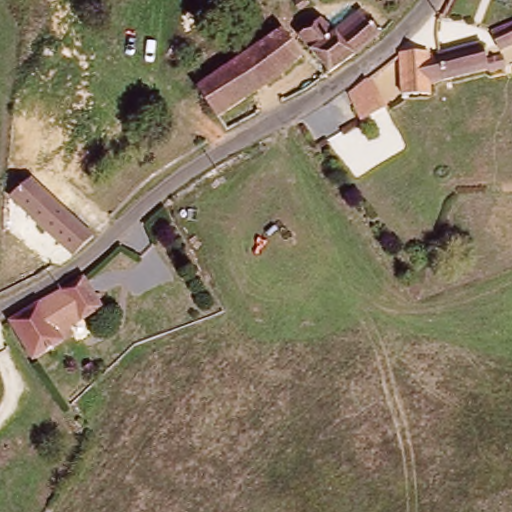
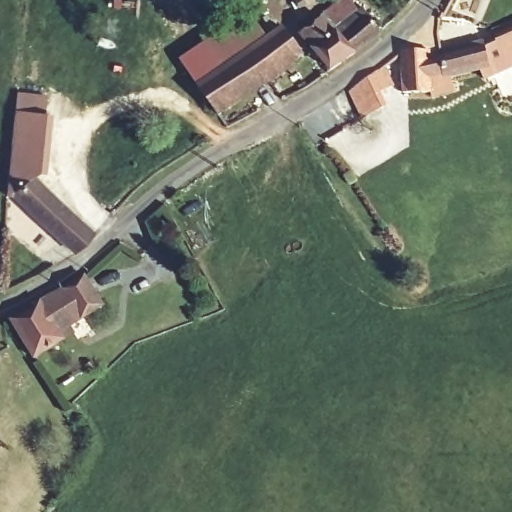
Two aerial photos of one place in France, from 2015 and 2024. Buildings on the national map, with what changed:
unchanged [(341,0),(352,0),(382,32),(330,71),(301,35),(341,0)]
new [(200,86),(180,59),(248,12),(268,39),(200,86)]
unchanged [(485,29),(512,18),(512,42),(494,50),(485,29)]
unchanged [(219,115),(200,86),(283,29),(302,57),(219,115)]
unchanged [(488,71),(440,80),(434,50),(482,44),(488,71)]
unchanged [(398,50),(425,47),(427,50),(434,50),(440,80),(427,82),(427,92),(401,94),(398,50)]
unchanged [(368,79),(375,74),(386,111),(380,113),(360,119),(351,95),(350,91),(368,79)]
new [(33,172),(27,180),(13,193),(17,196),(6,197),(15,111),(17,92),(46,95),(45,115),(51,115),(45,174),(33,172)]
unchanged [(75,252),(13,193),(33,173),(95,234),(75,252)]
unchanged [(75,327),(35,355),(11,316),(29,303),(83,272),(101,303),(72,323),(75,327)]

